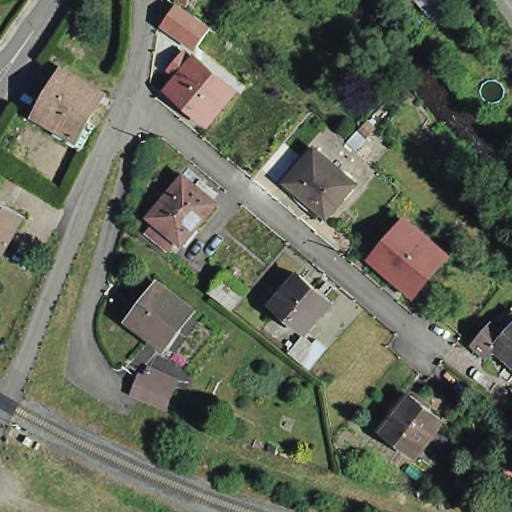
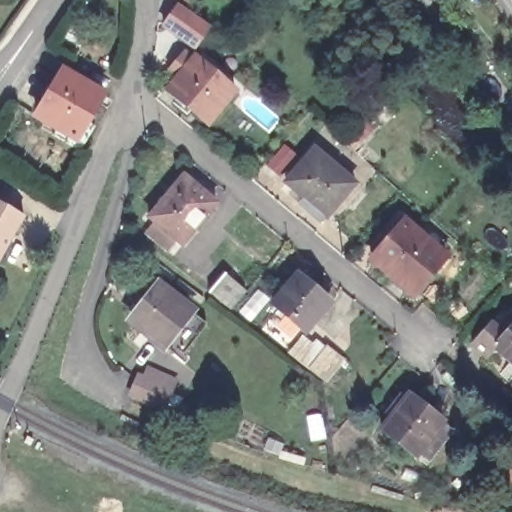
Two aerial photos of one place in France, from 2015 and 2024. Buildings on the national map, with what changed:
unchanged [(186,0),(184,6),(173,0),(186,0)]
unchanged [(421,0),(447,0),(431,12),(421,0)]
unchanged [(163,28),(175,10),(187,18),(208,32),(196,50),(180,39),(163,28)]
unchanged [(229,94),(201,125),(161,92),(172,79),(165,72),(177,58),(185,64),(189,60),(229,94)]
unchanged [(36,118),(63,74),(102,98),(76,142),(36,118)]
unchanged [(352,185),(324,219),(284,185),(311,152),(352,185)]
unchanged [(183,178),(215,205),(180,246),(147,219),(183,178)]
unchanged [(0,252),(0,212),(18,225),(0,252)]
unchanged [(370,261),(402,223),(443,258),(411,296),(370,261)]
unchanged [(230,306),(207,288),(221,271),(243,289),(230,306)]
unchanged [(301,334),(272,310),(297,278),(327,302),(301,334)]
unchanged [(183,307),(157,340),(127,316),(152,283),(183,307)]
unchanged [(497,355),(491,363),(474,350),(492,328),(501,335),(512,322),(512,368),(497,355)]
unchanged [(313,343),(324,351),(307,372),(286,356),(299,339),(310,347),(313,343)]
unchanged [(132,390),(140,371),(142,363),(175,377),(171,385),(164,403),(132,390)]
unchanged [(412,458),(381,433),(408,398),(440,423),(412,458)]

